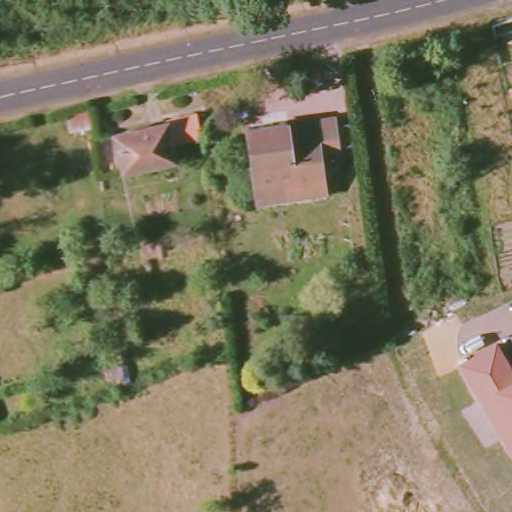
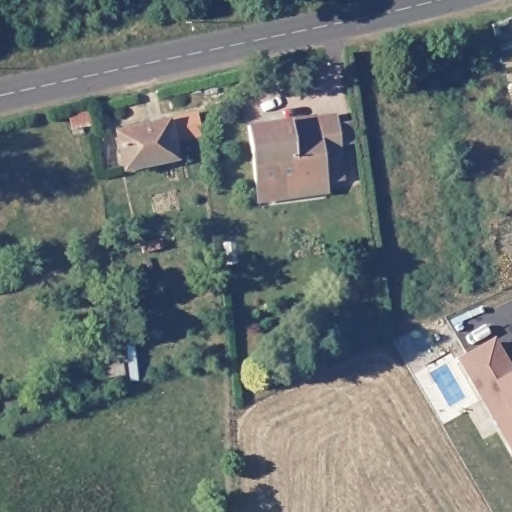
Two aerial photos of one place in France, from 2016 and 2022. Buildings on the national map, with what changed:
unchanged [(173,141),(176,157),(122,168),(116,133),(199,115),(201,124),(201,135),(173,141)]
unchanged [(256,201),(255,193),(253,167),(292,160),(288,122),(317,118),(317,120),(335,117),(335,125),(351,124),(352,142),(337,144),(338,154),(321,155),(324,185),(325,193),(256,201)]
unchanged [(248,126),(288,122),(292,160),(253,167),(248,126)]
unchanged [(459,358),(496,336),(512,368),(512,449),(459,358)]

